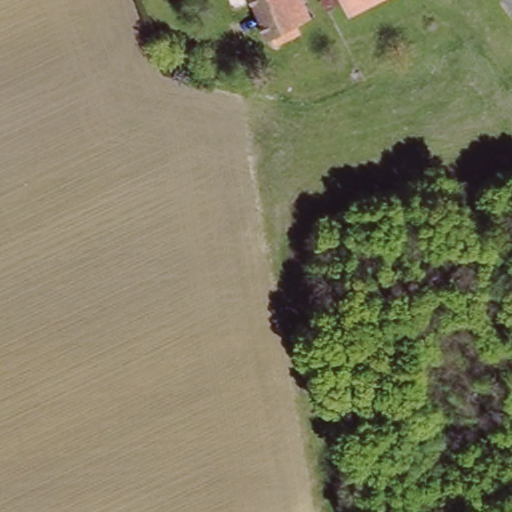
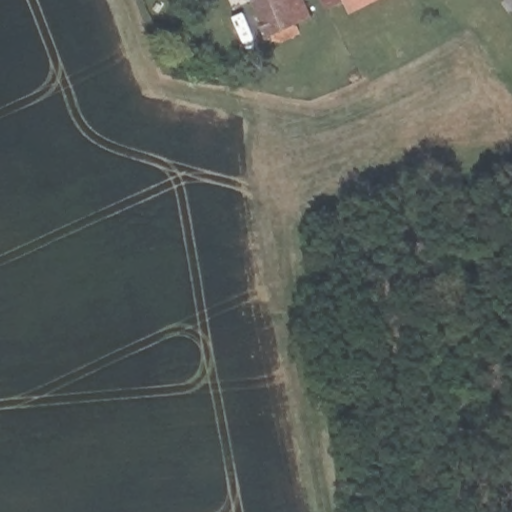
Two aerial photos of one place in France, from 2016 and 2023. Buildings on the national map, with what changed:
unchanged [(298,29),(273,41),(268,31),(262,34),(246,0),(302,0),(309,13),(294,20),(298,29)]
unchanged [(328,20),(318,0),(364,0),(344,11),(328,20)]
unchanged [(512,0),(512,16),(501,0),(512,0)]

